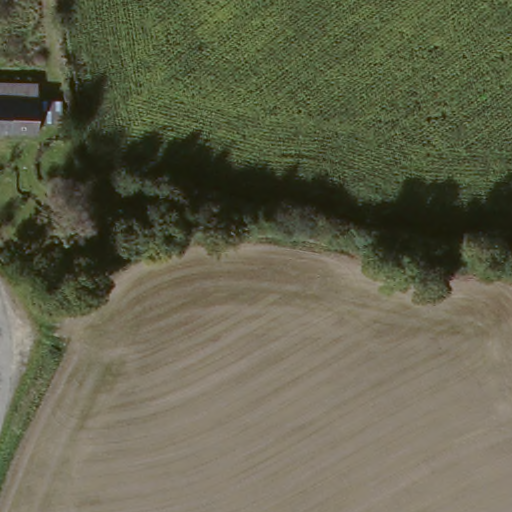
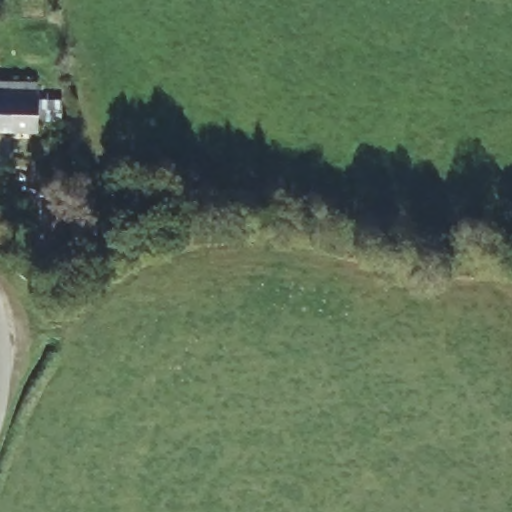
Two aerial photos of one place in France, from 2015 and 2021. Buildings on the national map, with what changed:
unchanged [(0,82),(40,81),(42,135),(0,134),(0,82)]
unchanged [(6,194),(0,194),(0,164),(6,164),(6,194)]

